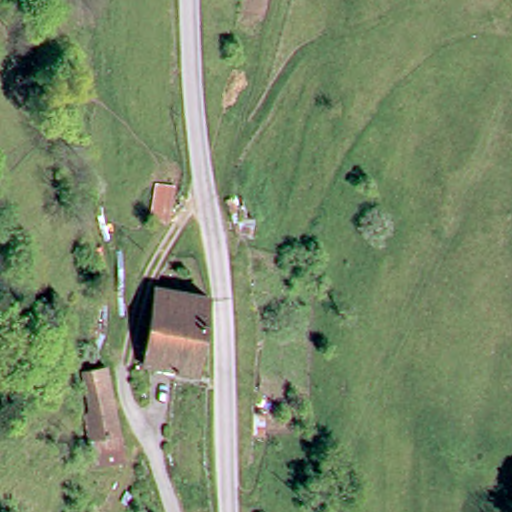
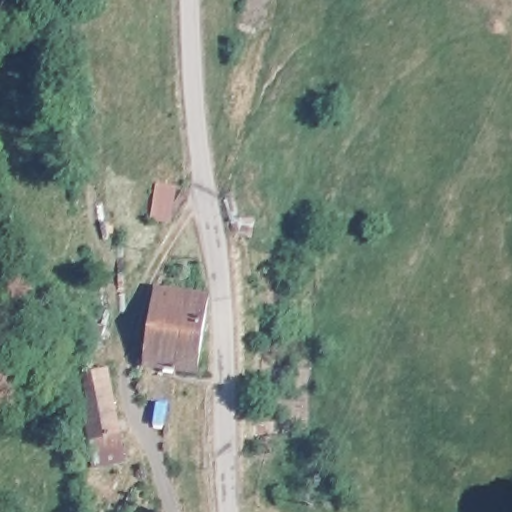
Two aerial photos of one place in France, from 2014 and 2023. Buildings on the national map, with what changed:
unchanged [(173,185),(169,216),(145,212),(149,182),(173,185)]
unchanged [(143,342),(151,288),(206,296),(198,356),(196,368),(178,366),(157,363),(140,362),(143,342)]
unchanged [(88,456),(73,382),(68,365),(100,358),(104,375),(121,448),(88,456)]

